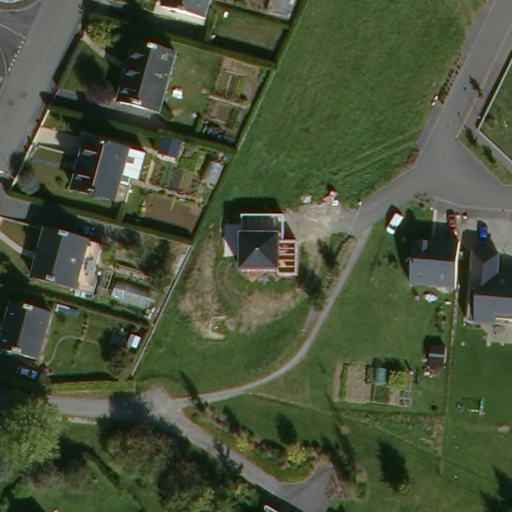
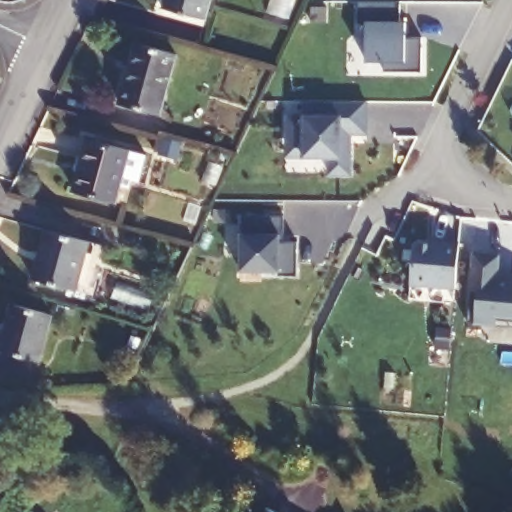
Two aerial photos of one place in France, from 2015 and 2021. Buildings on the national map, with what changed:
unchanged [(163,8),(166,0),(209,0),(204,20),(163,8)]
new [(357,1),(400,1),(399,22),(405,22),(405,37),(422,37),(421,72),(383,72),(383,61),(364,61),(365,23),(356,23),(357,1)]
unchanged [(173,51),(155,111),(117,101),(133,40),(173,51)]
new [(286,115),(303,115),(303,101),(366,101),(366,133),(340,133),(340,143),(349,143),(349,174),(329,174),(329,156),(303,156),(286,156),(286,141),(286,115)]
unchanged [(118,189),(115,203),(72,191),(85,142),(128,153),(145,157),(138,184),(131,182),(128,191),(118,189)]
unchanged [(243,232),(243,215),(285,216),(284,242),(297,242),(297,275),(279,275),(280,271),(240,270),(240,233),(243,232)]
unchanged [(86,243),(73,291),(29,279),(42,231),(86,243)]
unchanged [(459,286),(411,281),(416,237),(462,241),(459,286)]
unchanged [(505,272),(512,273),(512,326),(498,325),(496,316),(471,314),(476,250),(507,253),(505,272)]
unchanged [(53,320),(41,366),(0,355),(0,345),(10,310),(53,320)]

